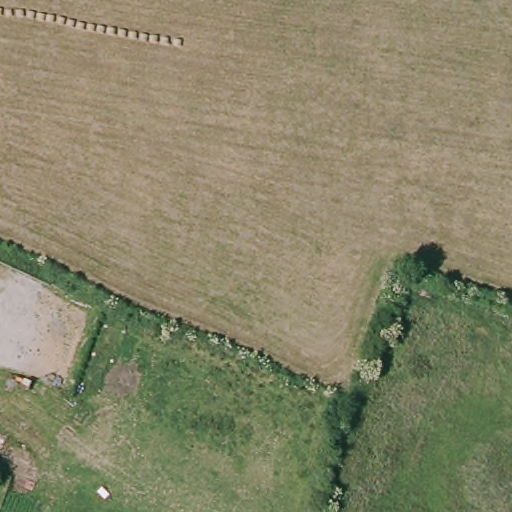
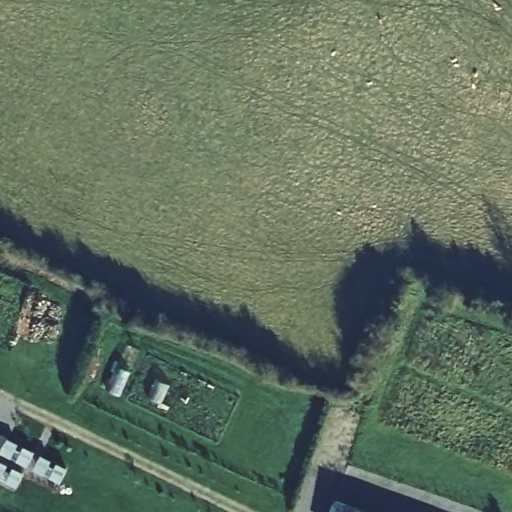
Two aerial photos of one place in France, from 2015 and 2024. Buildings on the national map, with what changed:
new [(372,512),(331,512),(335,500),(372,512)]

